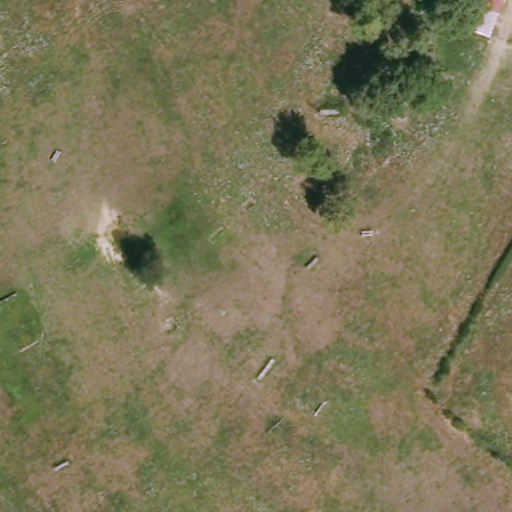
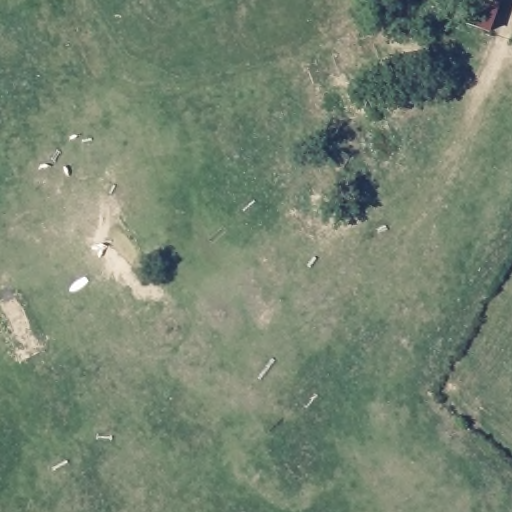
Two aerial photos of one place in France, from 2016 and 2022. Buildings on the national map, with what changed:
unchanged [(494,34),(462,24),(469,0),(504,0),(494,34)]

